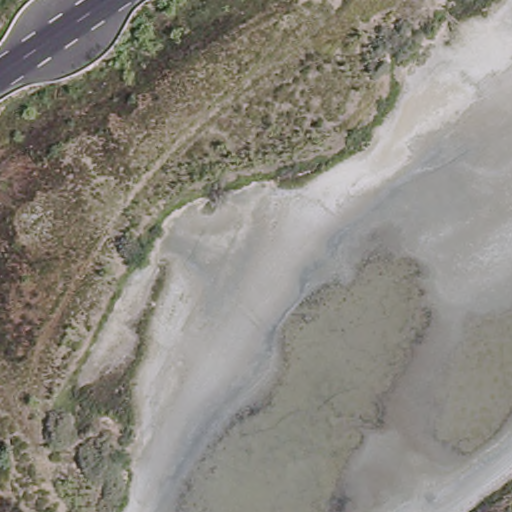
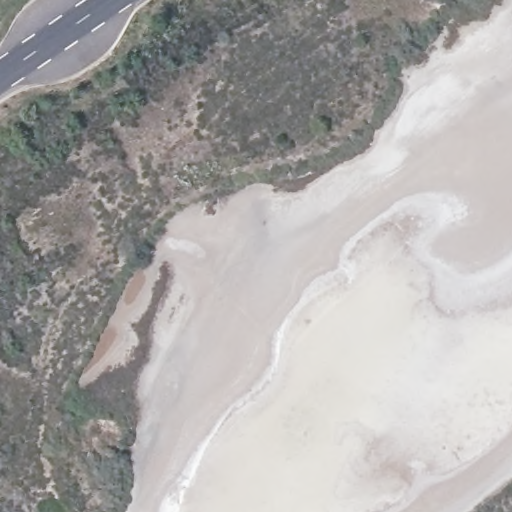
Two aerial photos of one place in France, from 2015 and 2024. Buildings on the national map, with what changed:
[]

